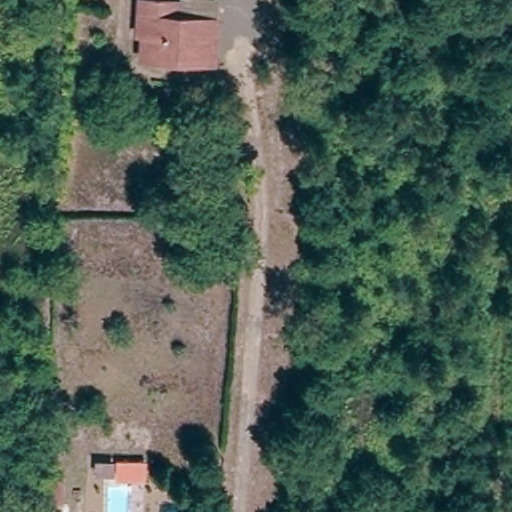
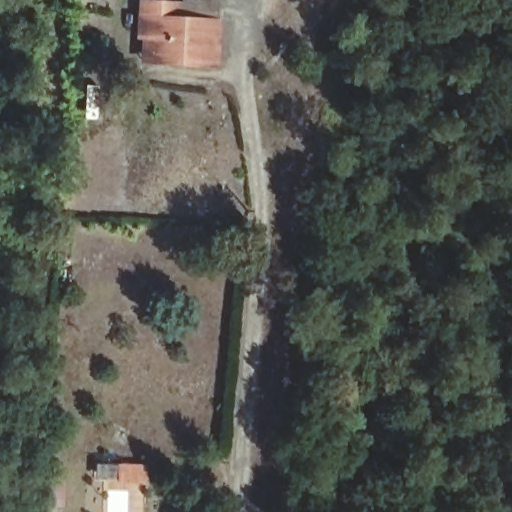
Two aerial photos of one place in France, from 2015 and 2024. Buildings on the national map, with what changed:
unchanged [(146,44),(148,26),(141,25),(142,9),(143,0),(183,0),(182,10),(219,13),(216,55),(178,53),(146,50),(146,44)]
unchanged [(68,483),(53,482),(55,459),(69,459),(68,483)]

